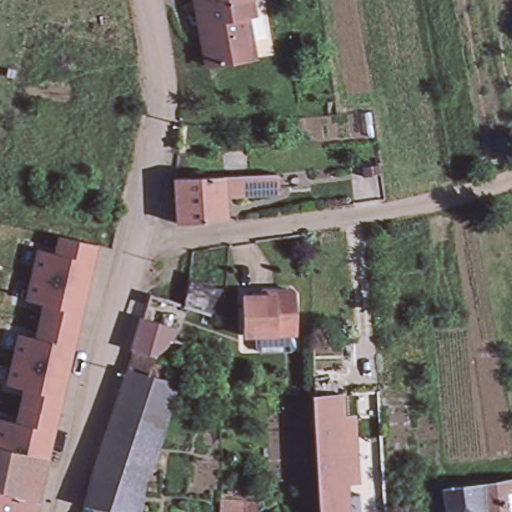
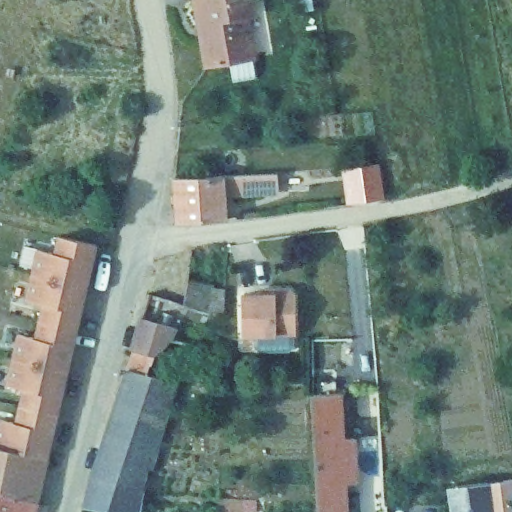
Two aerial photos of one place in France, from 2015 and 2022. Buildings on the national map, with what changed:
unchanged [(204,21),(199,21),(195,0),(248,0),(256,53),(210,60),(204,21)]
new [(343,166),(380,161),(385,196),(347,200),(343,166)]
unchanged [(279,190),(221,193),(220,174),(278,171),(279,190)]
unchanged [(220,174),(221,193),(223,218),(176,221),(176,198),(175,189),(174,174),(220,174)]
unchanged [(0,416),(15,419),(23,385),(5,381),(16,331),(33,335),(41,300),(24,297),(35,247),(51,250),(55,233),(93,241),(83,286),(56,418),(47,454),(0,444),(0,416)]
unchanged [(226,292),(224,318),(209,316),(206,315),(184,307),(189,286),(189,285),(226,292)]
unchanged [(260,292),(278,292),(289,292),(294,297),(294,336),(241,337),(241,298),(259,297),(260,292)]
unchanged [(143,317),(176,330),(171,344),(168,349),(153,358),(134,352),(132,351),(143,317)]
unchanged [(118,402),(128,371),(148,376),(176,383),(168,412),(118,402)]
unchanged [(311,397),(338,396),(346,512),(318,512),(309,397),(311,397)]
unchanged [(168,412),(161,436),(109,426),(118,402),(168,412)]
unchanged [(152,470),(146,469),(142,491),(93,477),(109,426),(161,436),(152,470)]
unchanged [(36,499),(0,487),(0,444),(47,454),(36,499)]
unchanged [(142,491),(138,512),(105,512),(85,508),(93,477),(142,491)]
unchanged [(488,479),(488,481),(512,477),(512,512),(455,512),(454,505),(453,498),(452,484),(488,479)]
unchanged [(31,512),(0,512),(0,487),(36,499),(31,512)]
unchanged [(257,504),(257,512),(220,512),(221,502),(257,504)]

